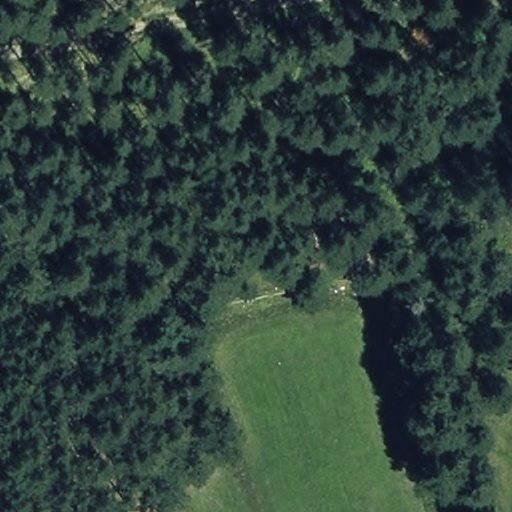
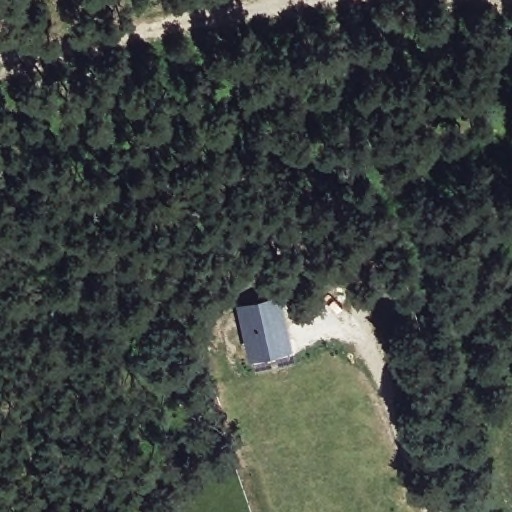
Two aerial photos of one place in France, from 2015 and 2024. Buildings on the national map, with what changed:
new [(280,292),(293,347),(250,356),(235,302),(280,292)]

